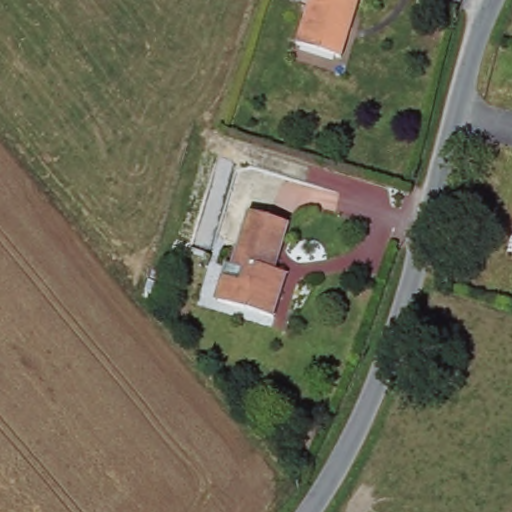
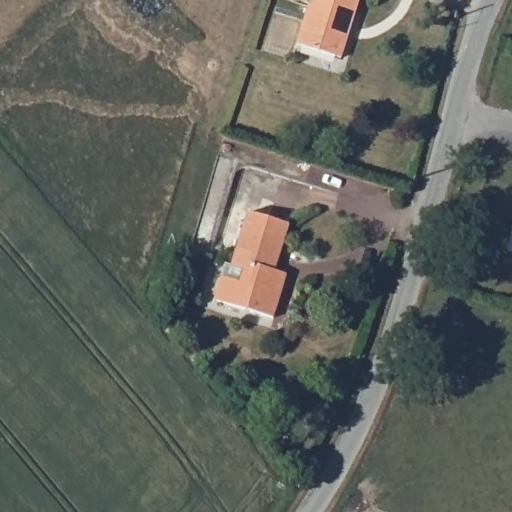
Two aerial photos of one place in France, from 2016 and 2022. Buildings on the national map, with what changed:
unchanged [(294,52),(311,0),(358,0),(359,1),(338,66),(294,52)]
unchanged [(224,297),(231,270),(236,271),(251,216),(292,226),(281,273),(293,277),(282,321),(240,311),(222,307),(224,297)]

